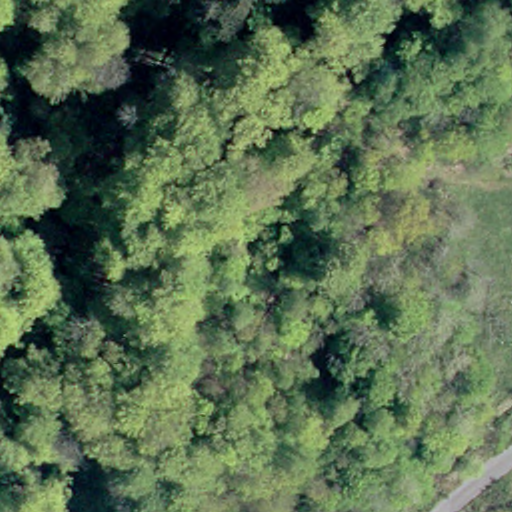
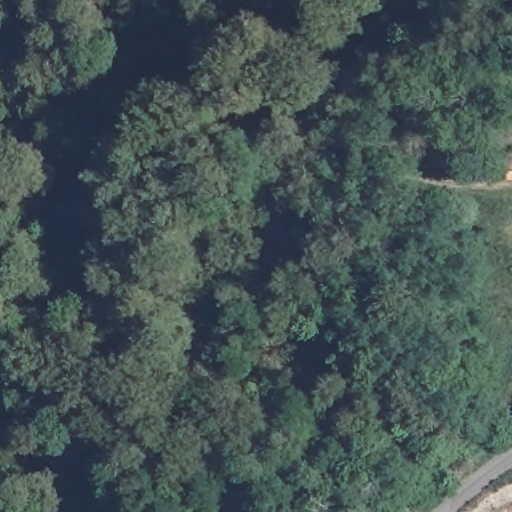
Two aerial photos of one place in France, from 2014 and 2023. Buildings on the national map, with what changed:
[]

